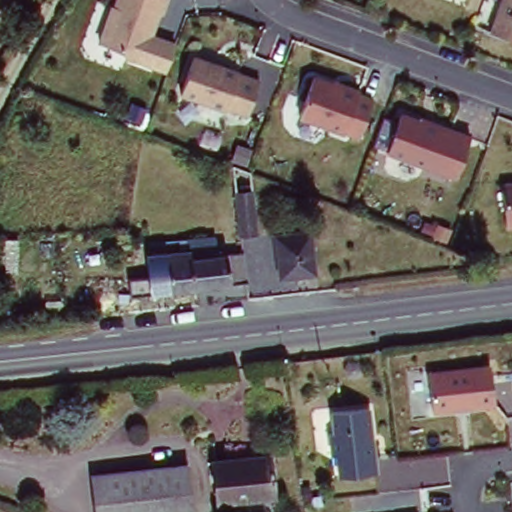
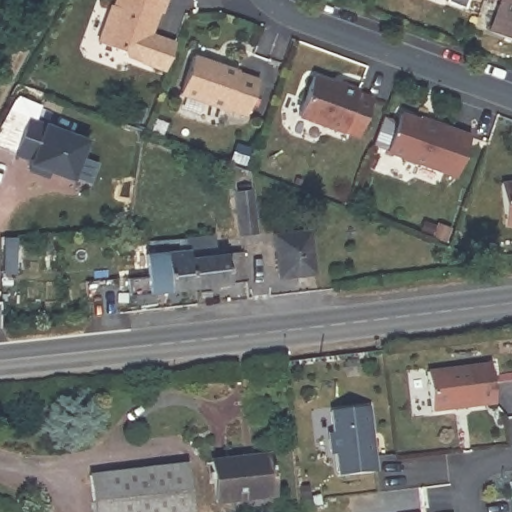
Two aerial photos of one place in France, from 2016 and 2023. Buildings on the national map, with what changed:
unchanged [(176,40),(169,70),(130,58),(98,37),(113,0),(168,0),(157,32),(176,40)]
unchanged [(493,33),(503,0),(512,0),(512,40),(493,33)]
unchanged [(261,74),(248,116),(181,94),(195,53),(261,74)]
unchanged [(371,90),(361,138),(301,119),(318,70),(371,90)]
unchanged [(473,130),(457,176),(390,152),(407,108),(473,130)]
new [(44,123),(90,139),(74,182),(51,174),(50,179),(30,171),(31,167),(28,165),(30,158),(15,154),(30,117),(44,123)]
unchanged [(235,188),(234,173),(252,178),(253,187),(257,227),(240,230),(235,188)]
unchanged [(512,177),(512,226),(510,226),(504,177),(512,177)]
unchanged [(159,288),(161,287),(156,250),(192,246),(192,234),(221,231),(222,250),(248,247),(252,279),(202,285),(159,291),(159,288)]
unchanged [(281,279),(275,235),(310,232),(315,274),(281,279)]
unchanged [(5,282),(4,276),(4,269),(12,270),(12,276),(12,283),(5,282)]
unchanged [(490,357),(498,400),(436,408),(431,367),(490,357)]
unchanged [(367,403),(371,439),(375,439),(378,471),(344,477),(336,407),(367,403)]
unchanged [(276,453),(281,491),(225,498),(220,459),(276,453)]
unchanged [(197,512),(97,512),(93,470),(188,459),(197,512)]

